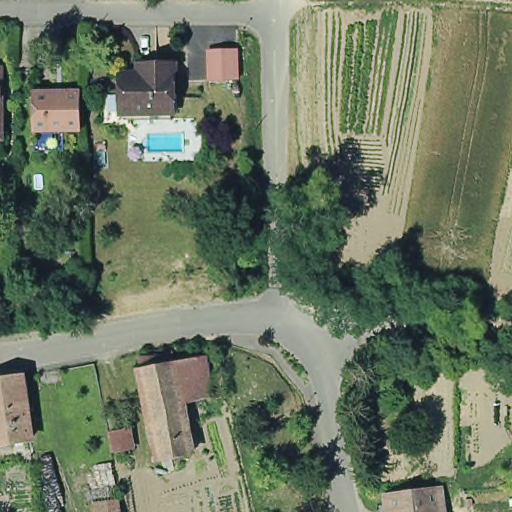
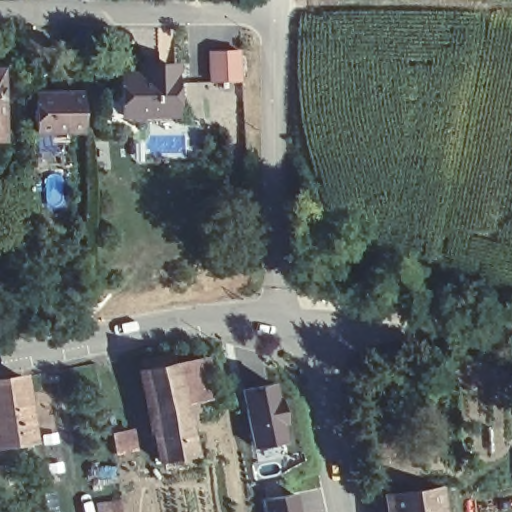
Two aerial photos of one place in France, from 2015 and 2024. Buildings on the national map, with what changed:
unchanged [(237,49),(238,86),(208,85),(207,47),(237,49)]
unchanged [(119,70),(140,70),(140,64),(176,64),(177,109),(127,110),(120,110),(120,91),(119,70)]
unchanged [(12,71),(12,140),(0,140),(0,71),(12,71)]
unchanged [(82,120),(65,120),(51,120),(35,121),(35,82),(51,82),(80,82),(82,120)]
unchanged [(155,436),(147,396),(143,374),(175,367),(176,368),(205,364),(213,403),(184,407),(188,428),(155,436)]
unchanged [(44,445),(4,450),(0,417),(0,388),(35,382),(44,445)]
new [(272,383),(285,442),(252,448),(240,389),(272,383)]
unchanged [(194,459),(162,466),(155,436),(188,428),(194,459)]
unchanged [(132,449),(115,453),(112,445),(110,433),(112,433),(129,430),(132,449)]
unchanged [(387,490),(442,482),(446,512),(391,512),(387,490)]
unchanged [(97,492),(124,488),(127,512),(100,512),(97,492)]
new [(298,512),(263,512),(261,500),(295,492),(298,512)]

